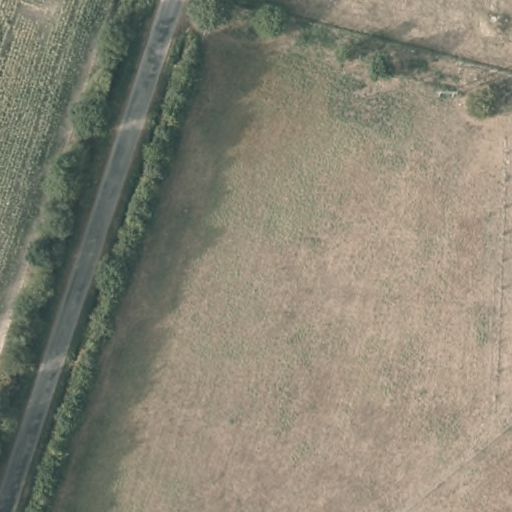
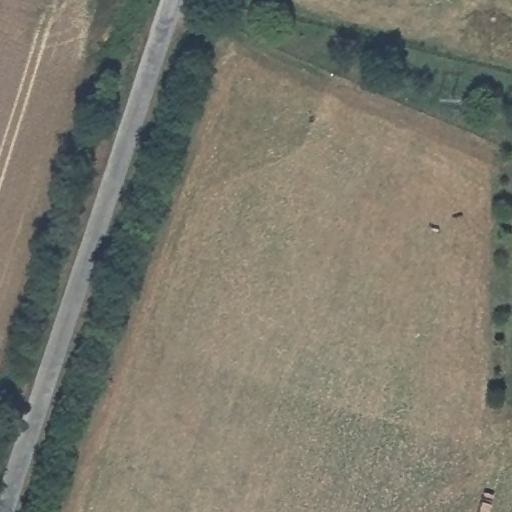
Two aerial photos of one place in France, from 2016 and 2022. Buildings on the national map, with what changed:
[]

